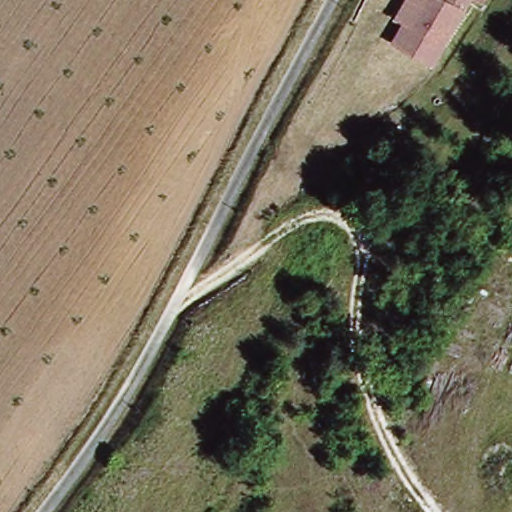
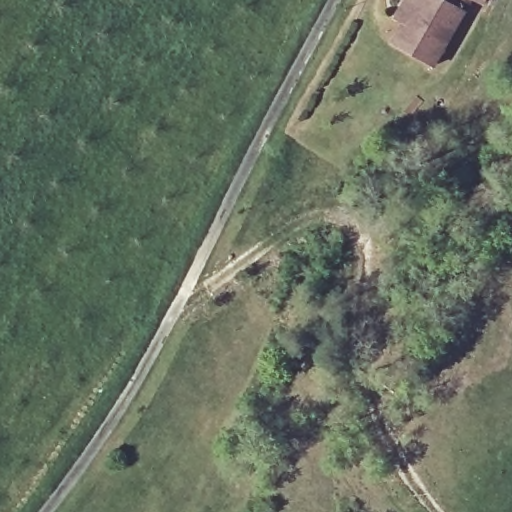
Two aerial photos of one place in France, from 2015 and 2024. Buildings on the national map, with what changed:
unchanged [(434,68),(390,45),(402,23),(393,18),(403,0),(471,0),(434,68)]
unchanged [(485,4),(478,0),(487,0),(485,4)]

